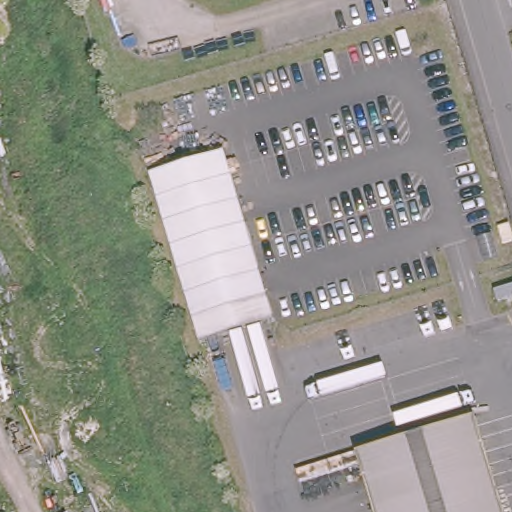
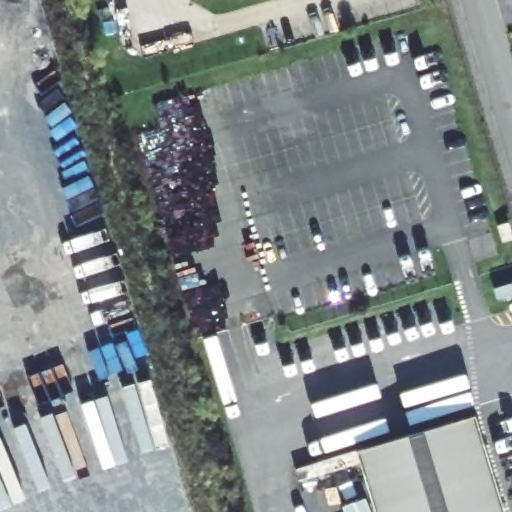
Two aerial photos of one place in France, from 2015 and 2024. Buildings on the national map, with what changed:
demolished [(148,170),(226,146),(274,318),(199,341),(148,170)]
unchanged [(297,465),(474,412),(506,512),(375,512),(359,460),(301,477),(297,465)]

